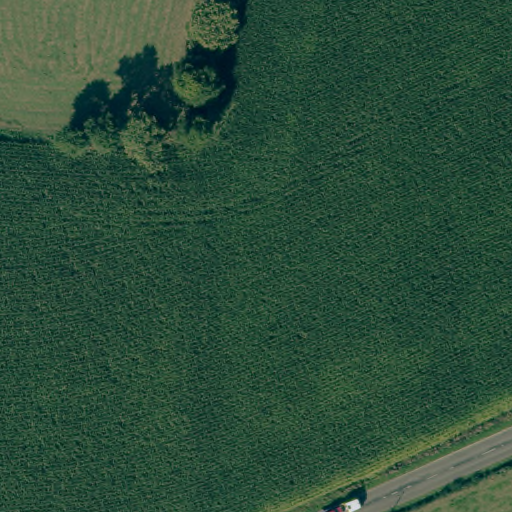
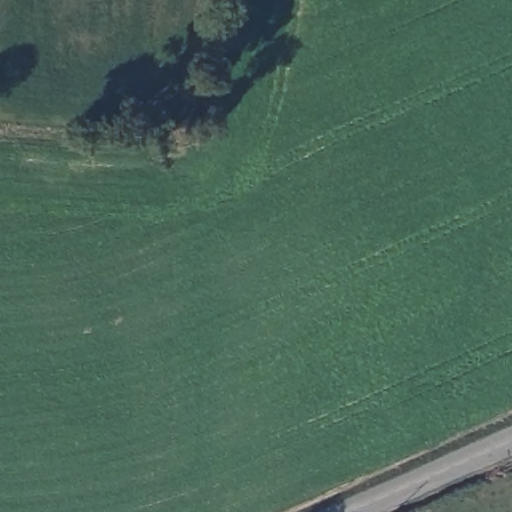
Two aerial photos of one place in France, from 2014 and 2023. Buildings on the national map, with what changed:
[]

